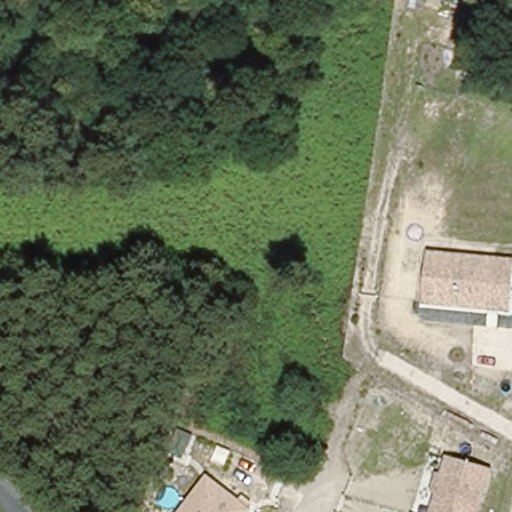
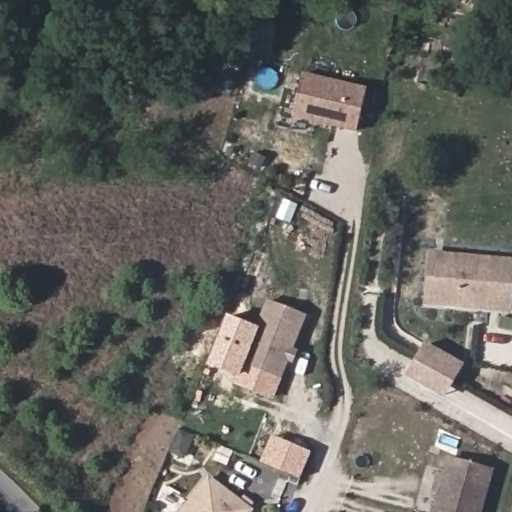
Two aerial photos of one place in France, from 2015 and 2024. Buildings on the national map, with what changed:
new [(293,116),(303,72),(366,87),(357,131),(293,116)]
unchanged [(434,251),(512,259),(512,312),(428,303),(434,251)]
new [(267,300),(306,315),(293,349),(298,351),(293,364),(289,362),(283,380),(241,364),(267,300)]
new [(406,376),(426,341),(465,364),(447,398),(406,376)]
new [(300,480),(260,463),(272,435),(312,452),(300,480)]
unchanged [(480,512),(433,512),(448,455),(493,467),(480,512)]
unchanged [(253,512),(181,512),(209,476),(256,508),(253,512)]

